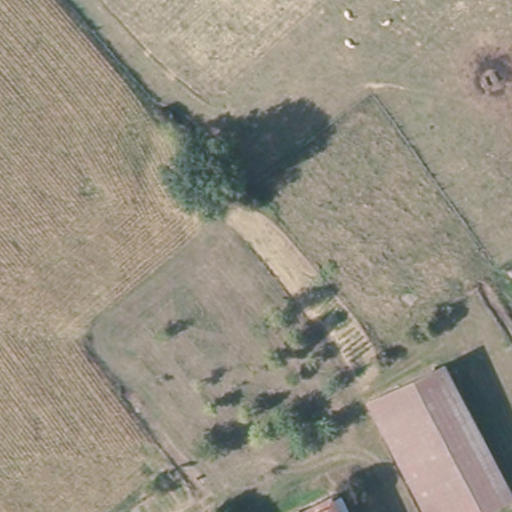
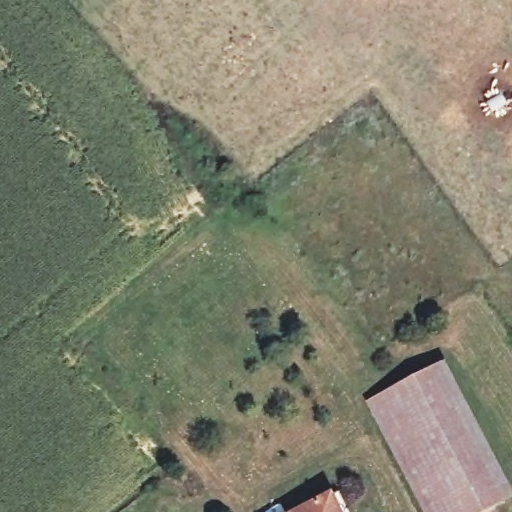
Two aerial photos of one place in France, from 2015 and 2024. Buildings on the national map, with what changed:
unchanged [(512,476),(512,491),(482,512),(424,512),(370,403),(375,400),(431,362),(512,476)]
unchanged [(346,512),(300,512),(335,493),(346,512)]

